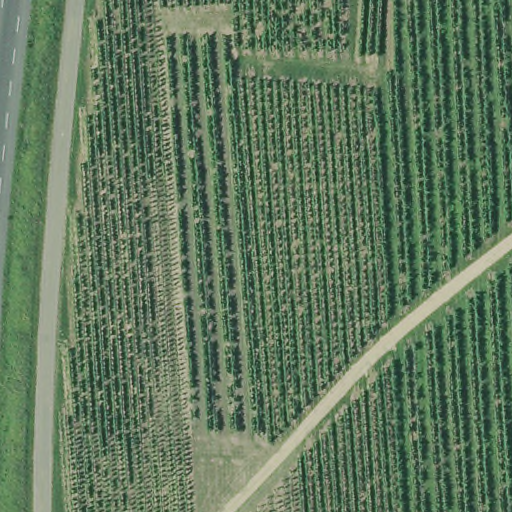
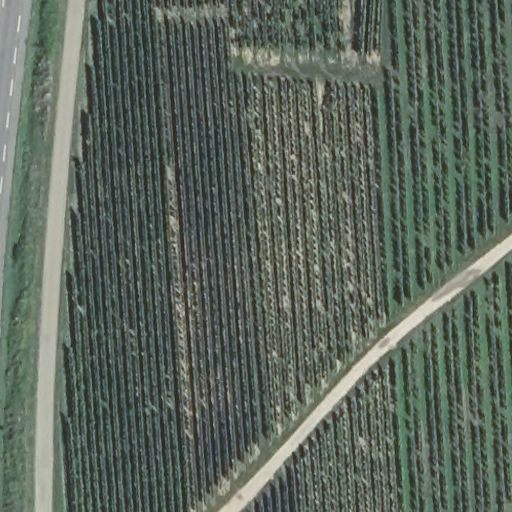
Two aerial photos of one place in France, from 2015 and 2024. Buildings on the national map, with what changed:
[]

